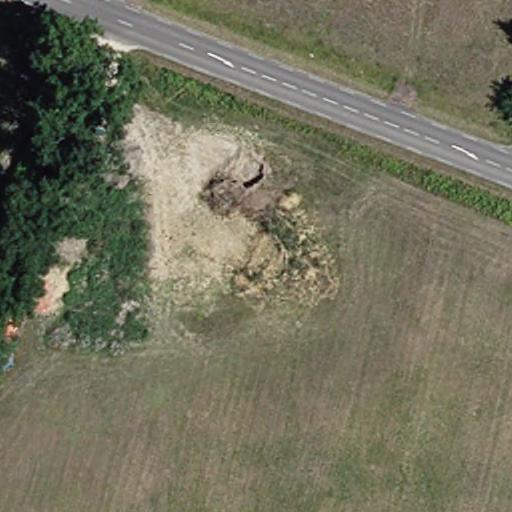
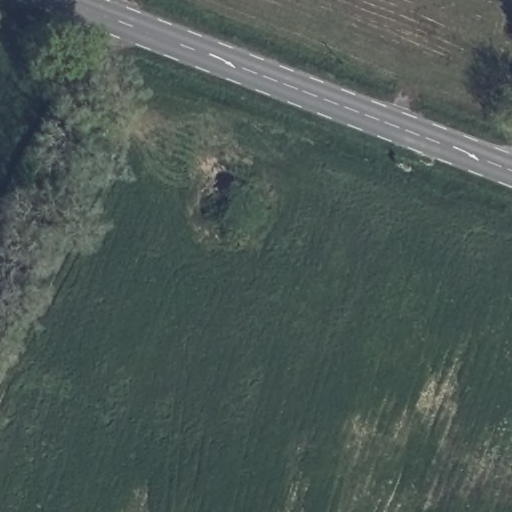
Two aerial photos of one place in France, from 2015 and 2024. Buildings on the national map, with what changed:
[]

